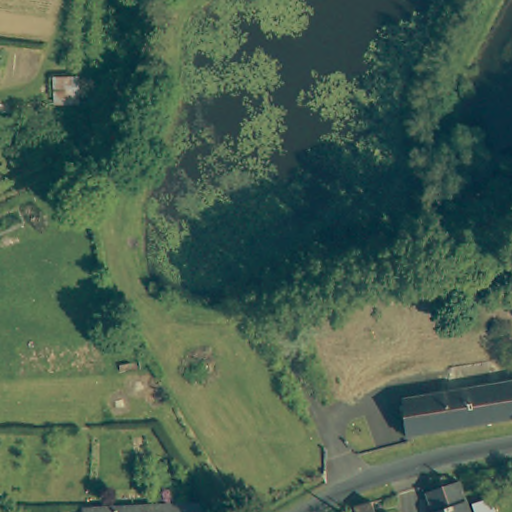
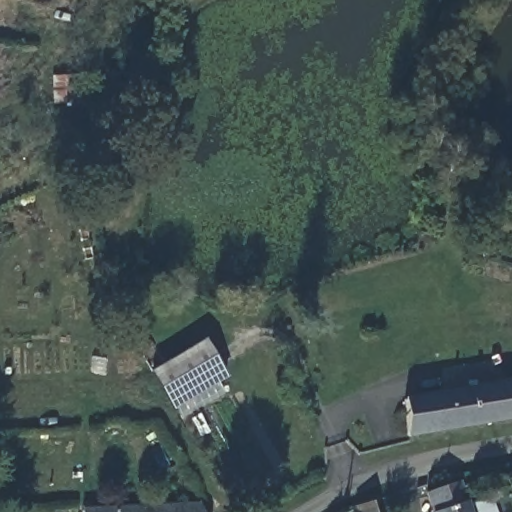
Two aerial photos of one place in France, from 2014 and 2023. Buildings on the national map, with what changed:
new [(204,338),(228,377),(217,383),(222,391),(181,414),(177,407),(172,410),(149,371),(204,338)]
unchanged [(405,432),(407,398),(512,381),(512,418),(405,436),(405,432)]
unchanged [(457,476),(467,506),(469,512),(430,512),(430,511),(433,510),(426,485),(457,476)]
unchanged [(467,506),(486,500),(490,512),(469,512),(467,506)]
unchanged [(370,502),(373,512),(356,512),(355,508),(370,502)]
unchanged [(198,503),(198,504),(202,512),(146,512),(146,505),(198,503)]
unchanged [(83,508),(146,505),(146,512),(83,512),(83,508)]

